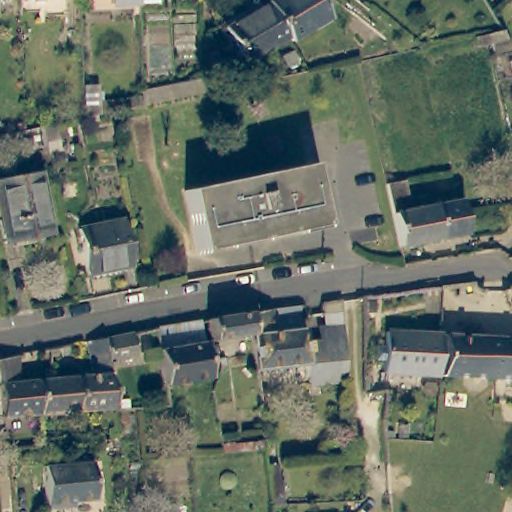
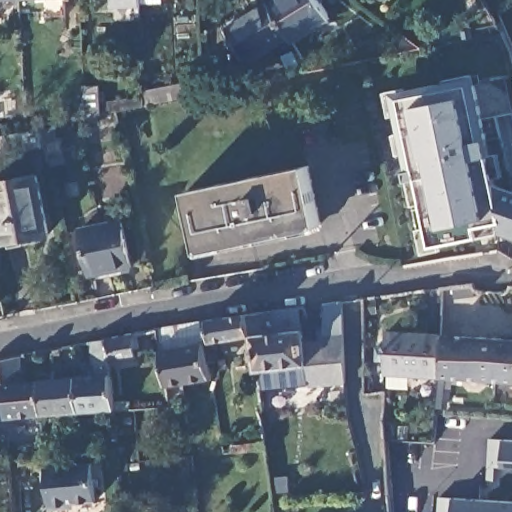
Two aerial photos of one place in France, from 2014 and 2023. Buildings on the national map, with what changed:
unchanged [(93,6),(93,0),(148,0),(140,2),(93,6)]
unchanged [(269,6),(280,0),(317,0),(330,22),(293,45),(290,41),(269,6)]
unchanged [(290,41),(247,68),(225,35),(269,6),(290,41)]
new [(494,154),(499,152),(504,175),(494,179),(496,185),(512,190),(512,236),(500,232),(478,236),(442,243),(441,249),(422,254),(417,229),(427,228),(422,204),(413,205),(409,180),(407,180),(405,171),(409,170),(404,153),(398,154),(384,92),(392,91),(476,74),(494,154)]
unchanged [(83,118),(81,86),(97,85),(98,115),(83,118)]
unchanged [(0,136),(24,130),(43,126),(55,124),(63,165),(50,167),(46,147),(0,157),(0,136)]
unchanged [(184,195),(306,170),(320,229),(198,253),(184,195)]
unchanged [(0,230),(0,187),(35,180),(47,239),(4,247),(0,230)]
demolished [(389,183),(408,180),(413,202),(403,204),(404,211),(461,200),(462,203),(469,234),(404,247),(389,183)]
unchanged [(135,272),(94,281),(84,236),(126,227),(135,272)]
unchanged [(310,366),(260,372),(257,336),(216,343),(214,321),(254,313),(274,310),(277,333),(306,330),(308,342),(322,341),(322,330),(335,330),(342,328),(344,385),(322,385),(312,386),(311,377),(310,366)]
unchanged [(437,376),(383,374),(386,332),(440,335),(437,376)]
unchanged [(55,381),(96,376),(94,343),(108,340),(136,335),(139,360),(110,365),(116,410),(45,417),(42,382),(55,381)]
unchanged [(512,339),(512,380),(437,376),(440,335),(512,339)]
unchanged [(209,352),(220,351),(222,362),(230,362),(230,369),(223,370),(223,366),(219,368),(218,363),(210,365),(213,380),(170,388),(165,351),(208,345),(209,352)]
unchanged [(19,357),(19,385),(42,382),(45,417),(6,421),(0,361),(19,357)]
unchanged [(258,393),(268,392),(269,408),(259,410),(258,393)]
unchanged [(131,411),(134,434),(119,435),(116,413),(131,411)]
new [(487,438),(512,440),(512,467),(492,466),(492,480),(485,480),(487,438)]
unchanged [(254,443),(254,453),(222,456),(220,447),(254,443)]
unchanged [(99,505),(71,505),(71,512),(51,512),(49,468),(95,465),(99,505)]
new [(437,497),(512,501),(512,512),(436,512),(437,497)]

